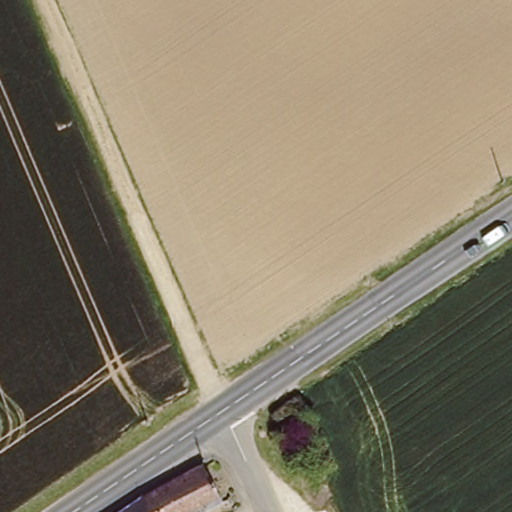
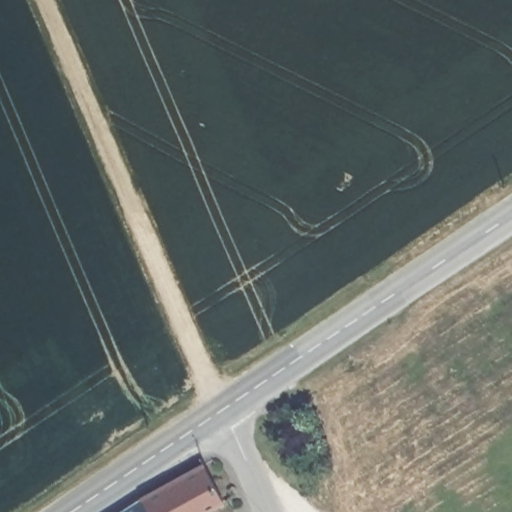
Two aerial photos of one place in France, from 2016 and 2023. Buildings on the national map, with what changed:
unchanged [(207,467),(218,485),(229,504),(214,512),(150,512),(144,502),(207,467)]
unchanged [(144,502),(150,512),(128,512),(144,502)]

